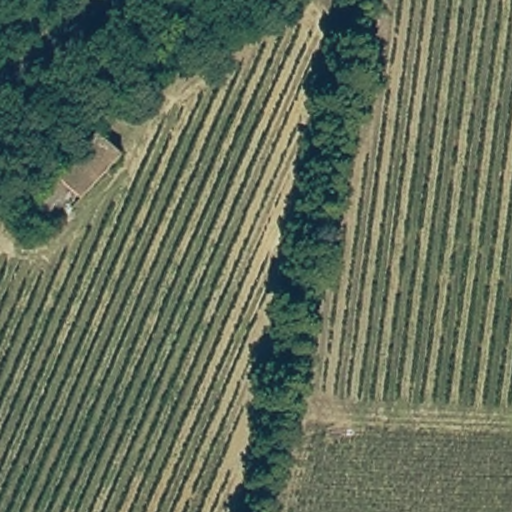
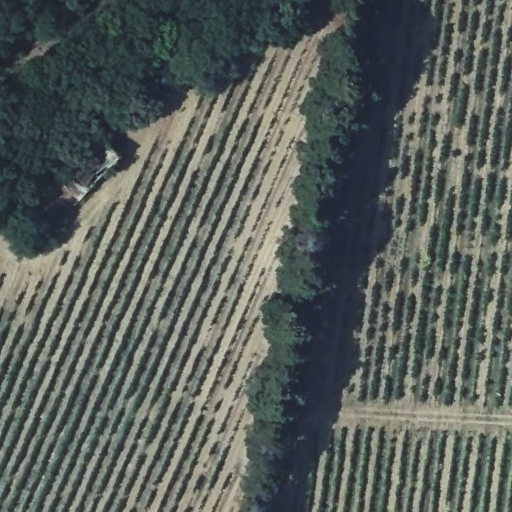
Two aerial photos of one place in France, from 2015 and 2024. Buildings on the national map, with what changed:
unchanged [(82,199),(55,174),(97,129),(123,153),(82,199)]

